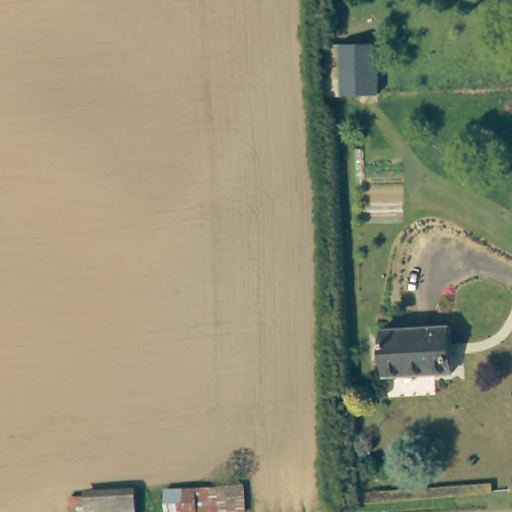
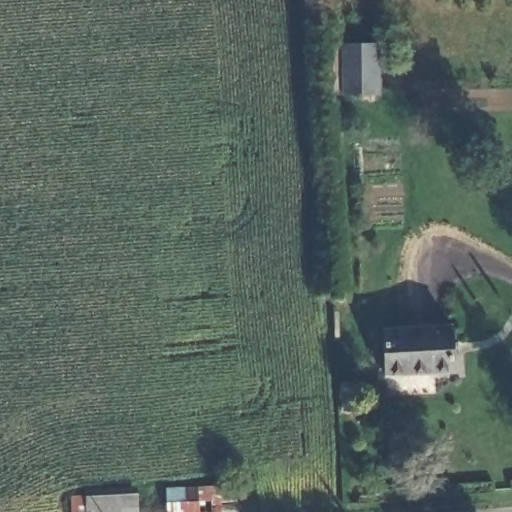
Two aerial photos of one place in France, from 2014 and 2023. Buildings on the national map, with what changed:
unchanged [(377,91),(342,92),(341,42),(376,42),(377,91)]
unchanged [(453,372),(449,372),(390,375),(385,375),(385,371),(383,332),(383,328),(387,328),(446,324),(451,324),(451,329),(453,367),(453,372)]
unchanged [(195,484),(242,481),(245,512),(165,512),(164,485),(195,484)]
unchanged [(66,495),(66,491),(70,491),(130,487),(130,492),(131,508),(132,512),(67,512),(67,511),(66,495)]

